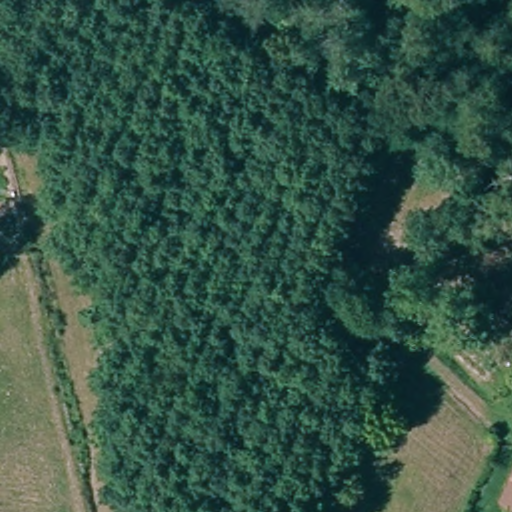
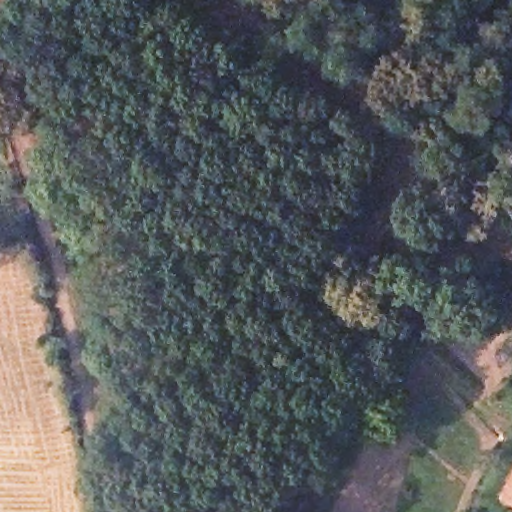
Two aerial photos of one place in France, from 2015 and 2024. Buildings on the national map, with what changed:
unchanged [(512,477),(512,508),(499,500),(512,477)]

